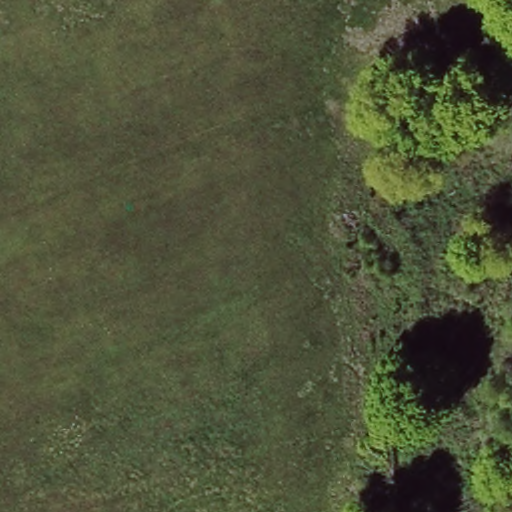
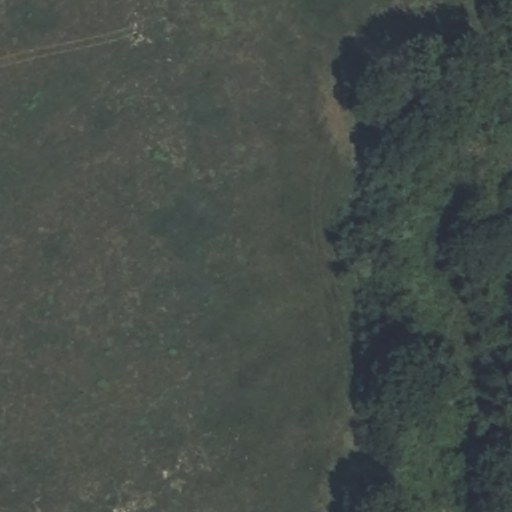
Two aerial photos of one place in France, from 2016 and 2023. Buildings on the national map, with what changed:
[]

